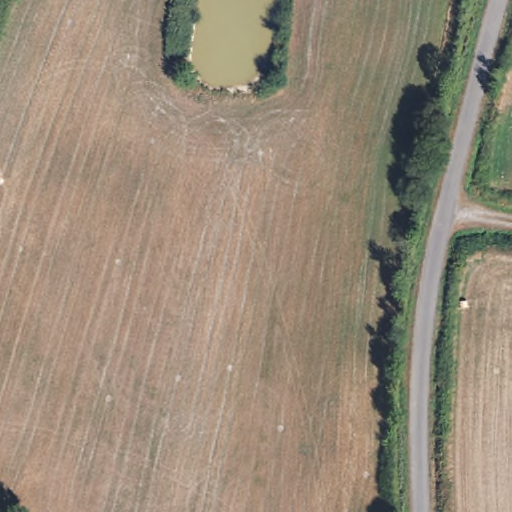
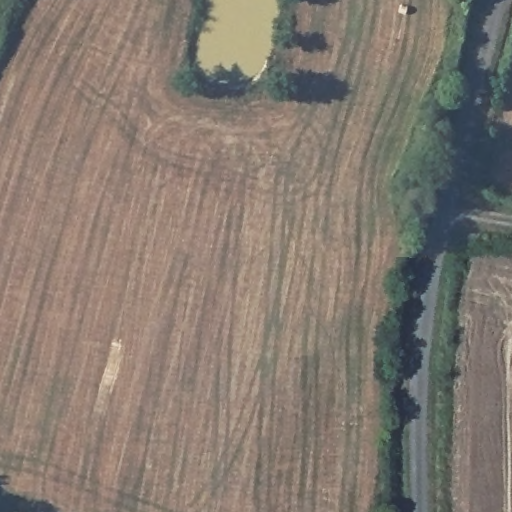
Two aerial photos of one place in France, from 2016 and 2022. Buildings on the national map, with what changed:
[]

